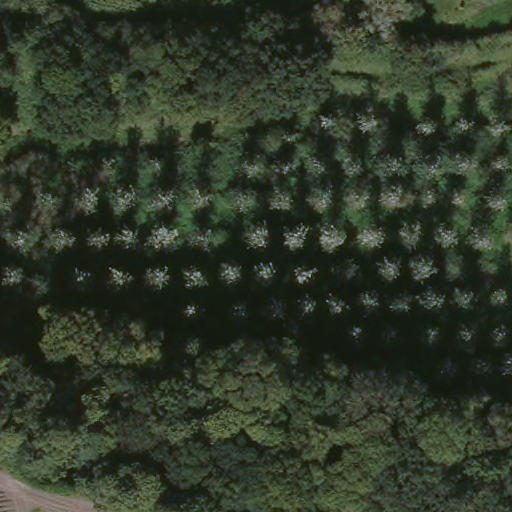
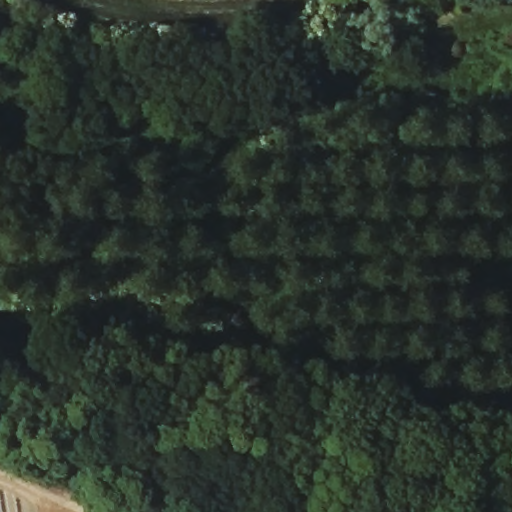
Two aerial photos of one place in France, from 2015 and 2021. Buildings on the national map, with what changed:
unchanged [(176,510),(99,485),(101,482),(106,464),(144,475),(153,478),(181,487),(176,509),(176,510)]

